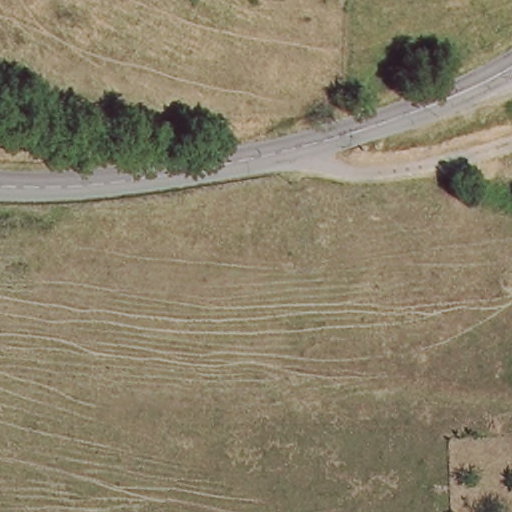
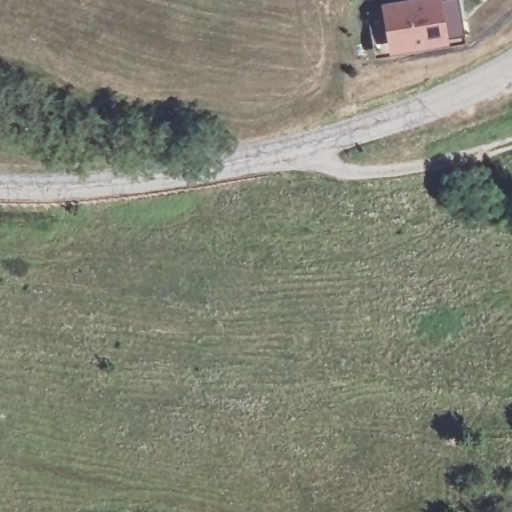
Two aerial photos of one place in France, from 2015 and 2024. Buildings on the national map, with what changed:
new [(447,37),(447,43),(388,51),(376,58),(367,11),(381,3),(398,0),(458,0),(463,35),(447,37)]

